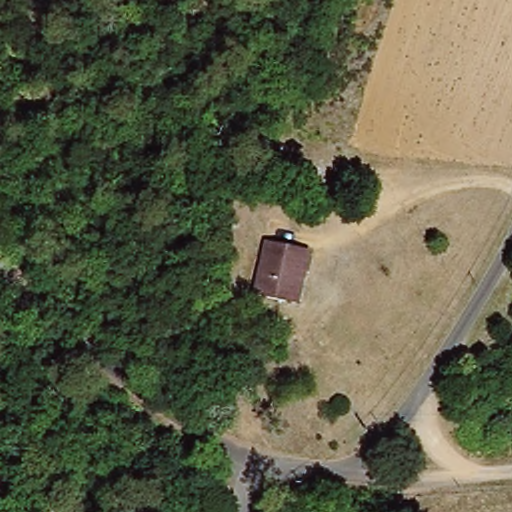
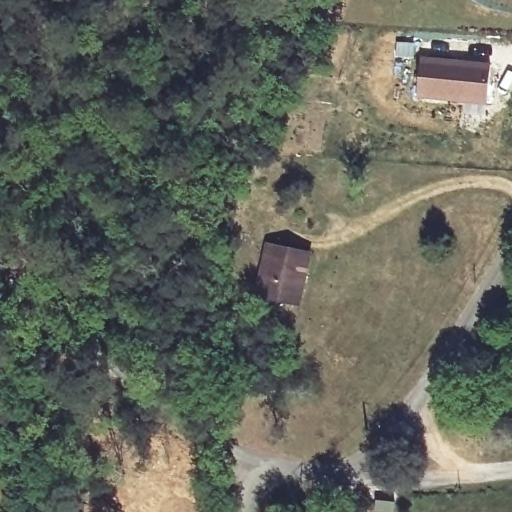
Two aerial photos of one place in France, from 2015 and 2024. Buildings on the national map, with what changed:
new [(488,103),(419,97),(421,58),(491,65),(488,103)]
unchanged [(299,305),(258,296),(269,242),(311,251),(299,305)]

